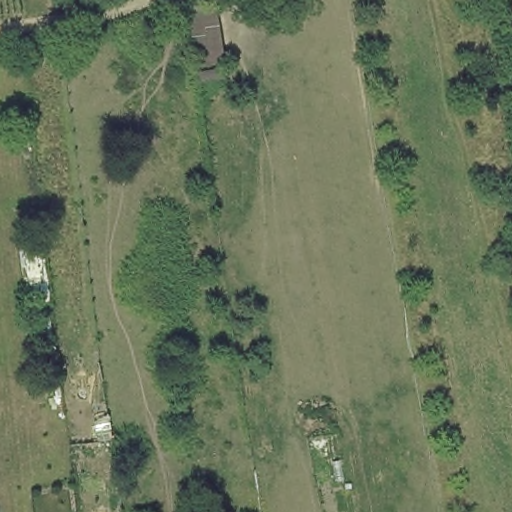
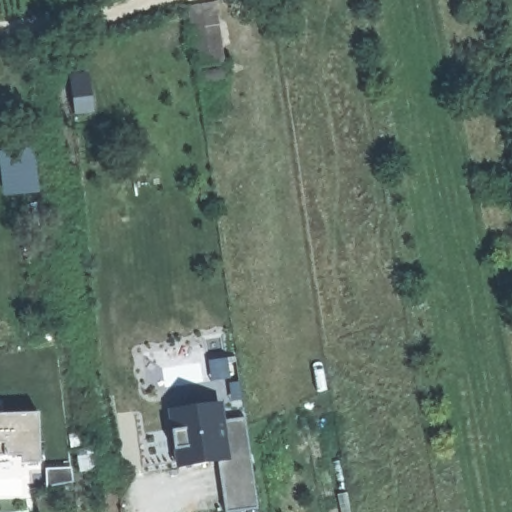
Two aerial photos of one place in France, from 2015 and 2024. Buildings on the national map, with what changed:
unchanged [(190,15),(189,10),(217,6),(217,8),(226,73),(197,73),(190,15)]
new [(96,115),(73,118),(69,75),(91,71),(96,115)]
new [(43,198),(1,202),(0,191),(0,148),(37,143),(43,198)]
new [(225,512),(217,463),(176,469),(168,410),(223,402),(226,421),(245,418),(257,509),(225,512)]
new [(0,458),(0,410),(42,409),(43,458),(0,458)]

